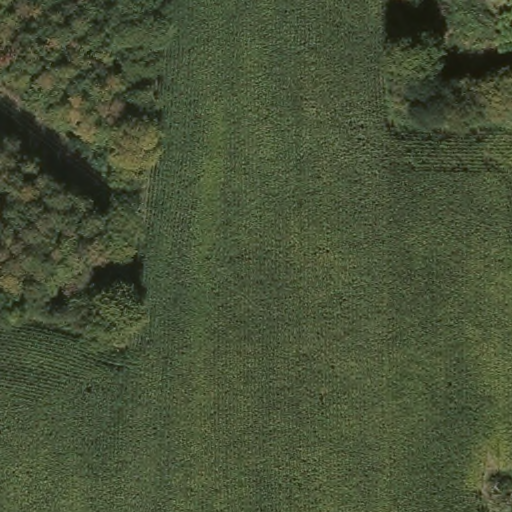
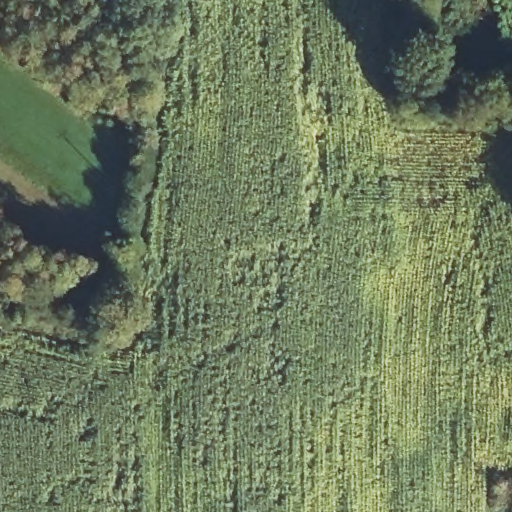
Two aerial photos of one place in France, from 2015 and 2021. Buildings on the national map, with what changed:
unchanged [(460,90),(460,100),(441,100),(441,90),(460,90)]

